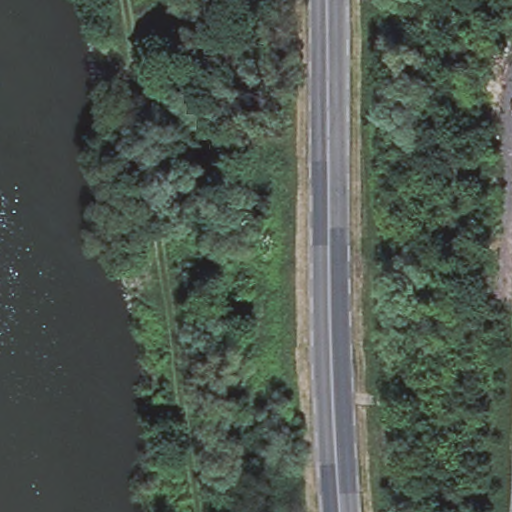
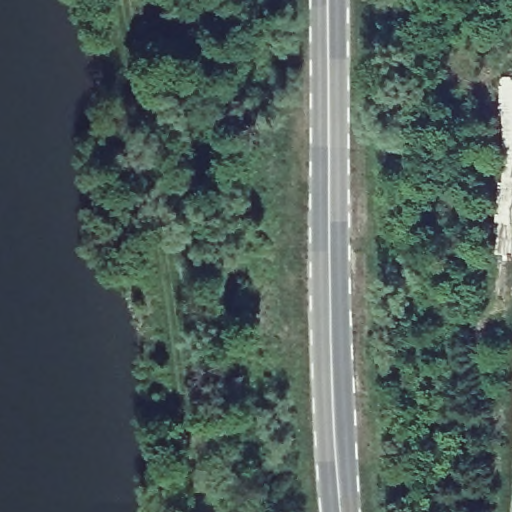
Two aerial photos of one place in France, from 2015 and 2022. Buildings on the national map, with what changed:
[]

